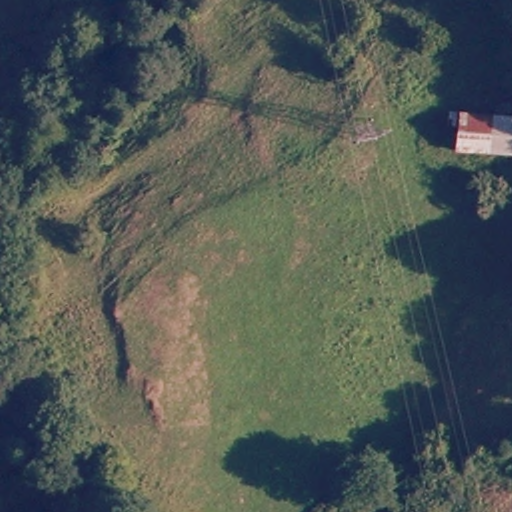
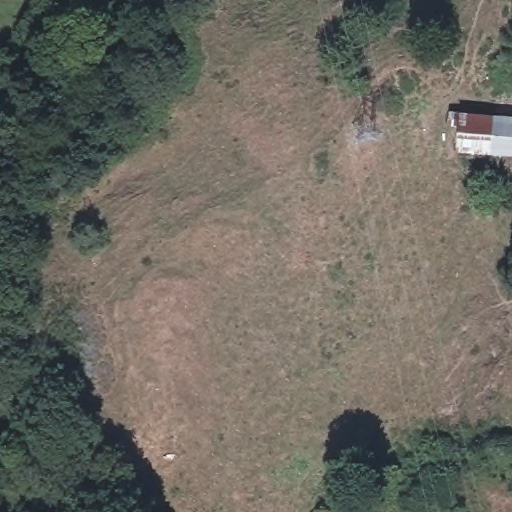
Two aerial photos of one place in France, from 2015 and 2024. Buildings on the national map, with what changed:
unchanged [(461,157),(464,112),(512,115),(512,160),(461,157)]

